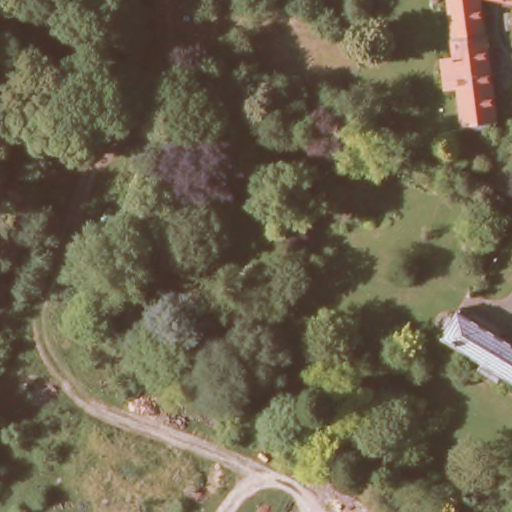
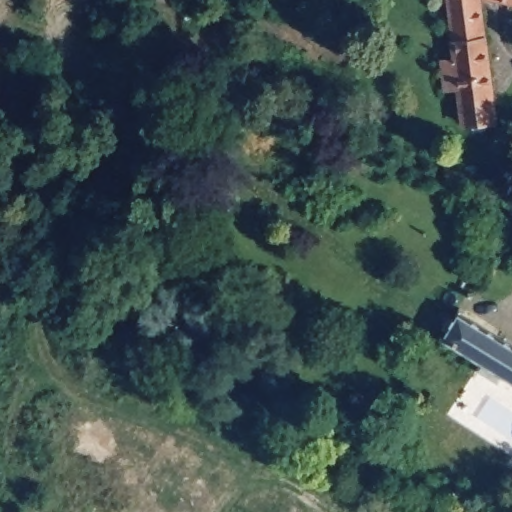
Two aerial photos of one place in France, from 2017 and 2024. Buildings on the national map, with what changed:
unchanged [(487,118),(487,120),(487,122),(485,124),(481,125),(478,125),(475,123),(473,120),(472,119),(464,120),(460,84),(446,85),(442,55),(455,54),(449,0),(482,0),(495,116),(488,117),(487,118)]
unchanged [(232,205),(224,208),(217,204),(218,194),(226,191),(232,195),(232,205)]
unchanged [(474,295),(472,299),(468,296),(470,293),(472,294),(474,295)]
unchanged [(442,338),(457,313),(457,312),(459,309),(460,307),(464,311),(462,313),(512,344),(512,380),(502,374),(498,379),(481,369),(485,364),(442,338)]

